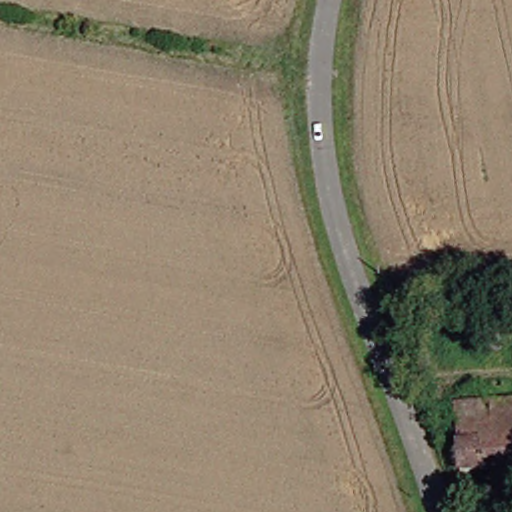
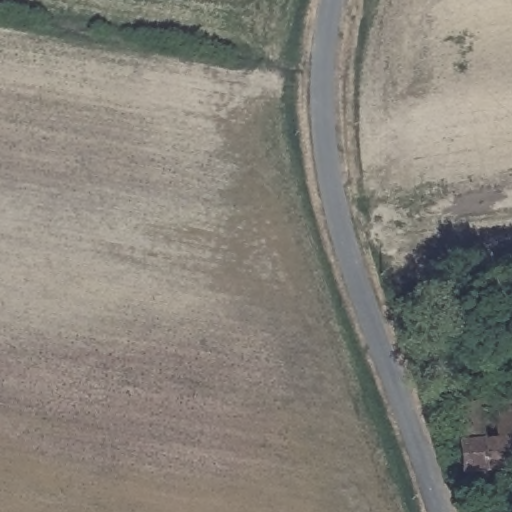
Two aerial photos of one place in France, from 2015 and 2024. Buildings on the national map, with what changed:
unchanged [(470,477),(459,410),(512,403),(512,472),(470,477)]

